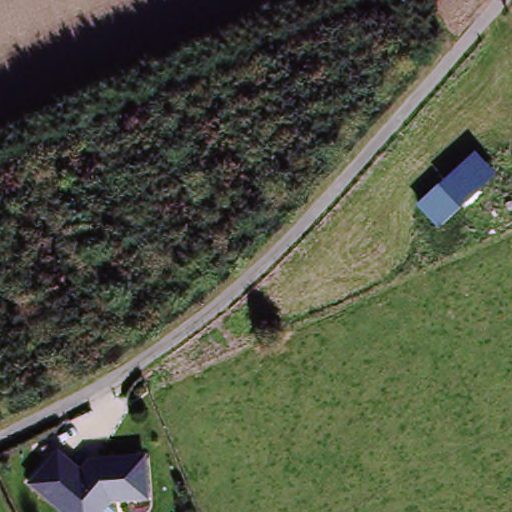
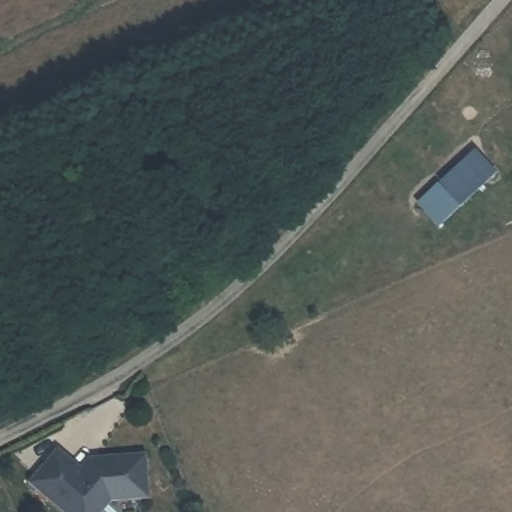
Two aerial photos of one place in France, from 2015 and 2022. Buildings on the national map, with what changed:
unchanged [(477,152),(497,173),(438,227),(417,205),(477,152)]
unchanged [(37,492),(32,487),(56,456),(83,477),(89,470),(87,470),(92,463),(143,460),(146,500),(110,502),(101,512),(61,512),(47,500),(50,497),(39,490),(37,492)]

